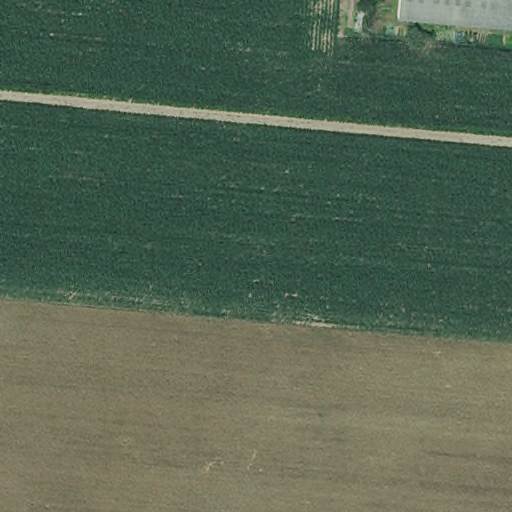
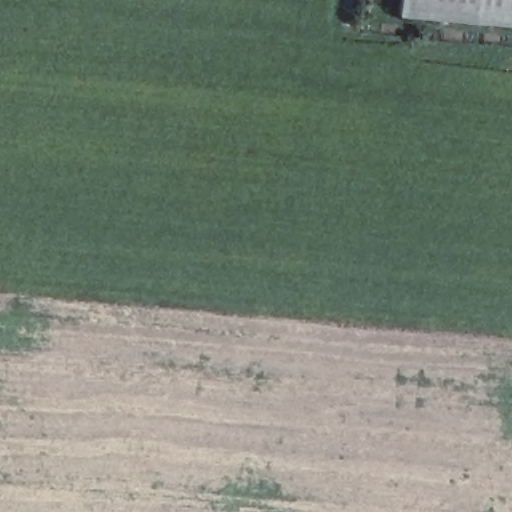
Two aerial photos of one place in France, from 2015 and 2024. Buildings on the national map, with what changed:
unchanged [(392,0),(471,0),(470,20),(391,11),(392,0)]
unchanged [(470,20),(471,0),(512,0),(512,23),(470,20)]

